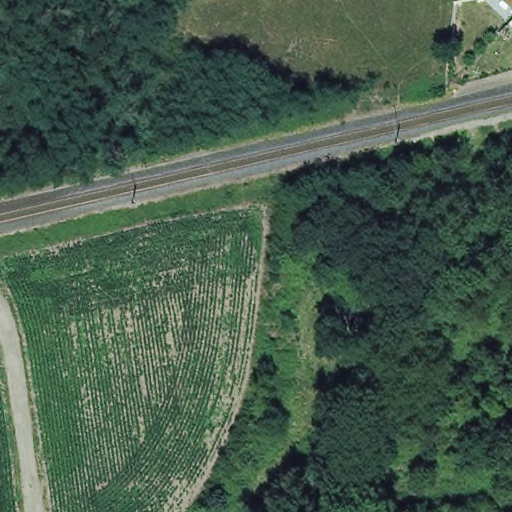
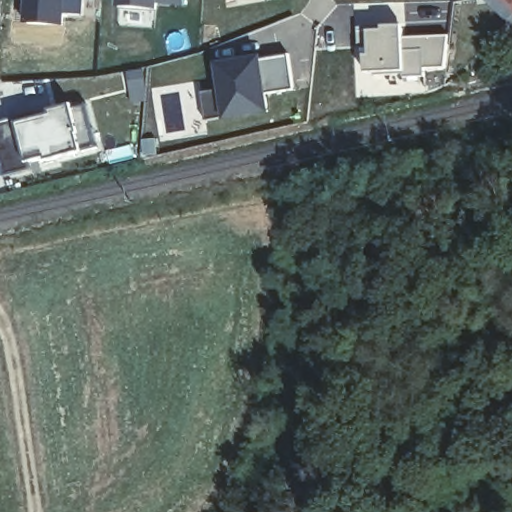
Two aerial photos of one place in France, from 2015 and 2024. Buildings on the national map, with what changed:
new [(64,16),(64,27),(24,23),(23,0),(85,0),(84,19),(64,16)]
new [(158,6),(158,13),(117,10),(118,0),(186,0),(185,8),(158,6)]
unchanged [(505,0),(512,0),(512,7),(505,0)]
new [(410,26),(412,36),(452,36),(449,69),(427,69),(428,76),(405,78),(405,74),(372,73),(370,46),(360,46),(360,28),(410,26)]
new [(297,89),(276,93),(279,110),(210,121),(205,91),(217,90),(214,66),(292,54),(297,89)]
new [(145,68),(147,101),(130,104),(124,71),(145,68)]
new [(24,121),(58,114),(57,108),(90,104),(100,146),(55,158),(54,155),(32,161),(35,170),(7,177),(0,150),(0,122),(22,116),(24,121)]

